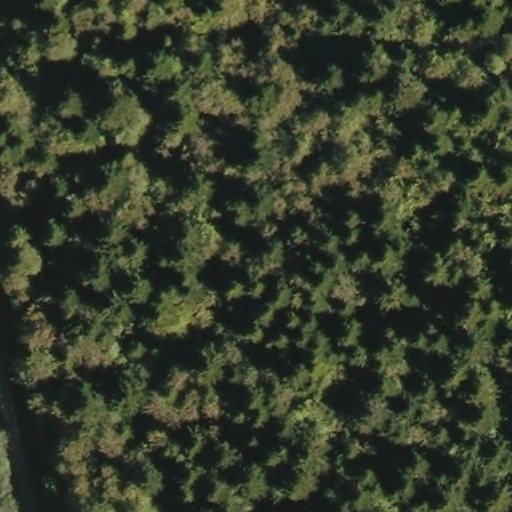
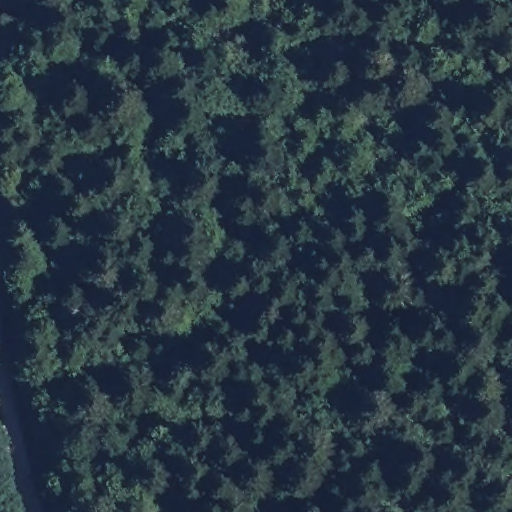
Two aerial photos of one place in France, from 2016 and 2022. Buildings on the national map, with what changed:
[]

